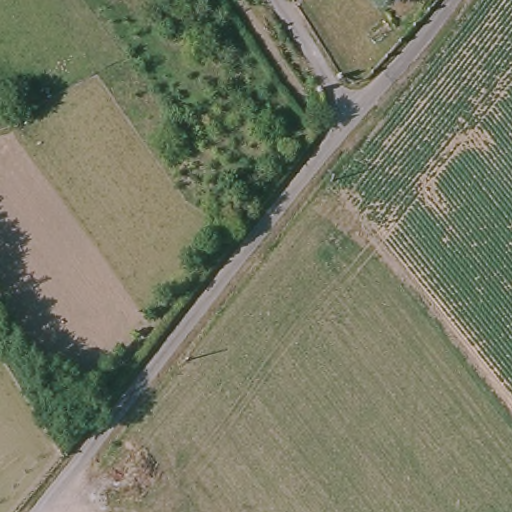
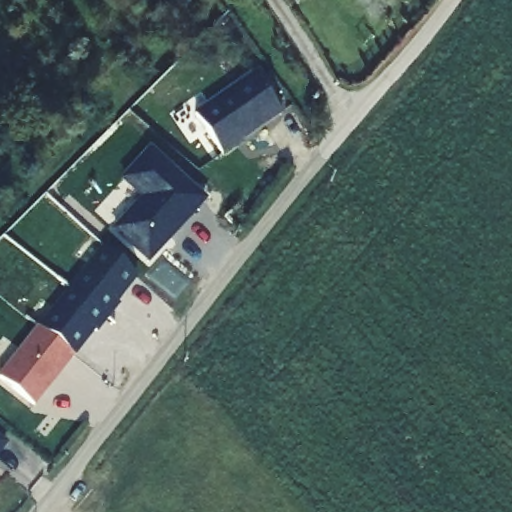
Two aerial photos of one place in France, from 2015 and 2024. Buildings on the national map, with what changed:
new [(195,115),(254,74),(282,113),(222,154),(195,115)]
new [(115,230),(144,199),(123,180),(150,150),(205,200),(149,261),(115,230)]
new [(39,328),(100,249),(136,280),(118,304),(119,307),(98,334),(95,331),(74,356),(39,328)]
new [(74,356),(33,406),(0,380),(0,378),(39,328),(74,356)]
new [(5,444),(0,450),(0,441),(5,444)]

